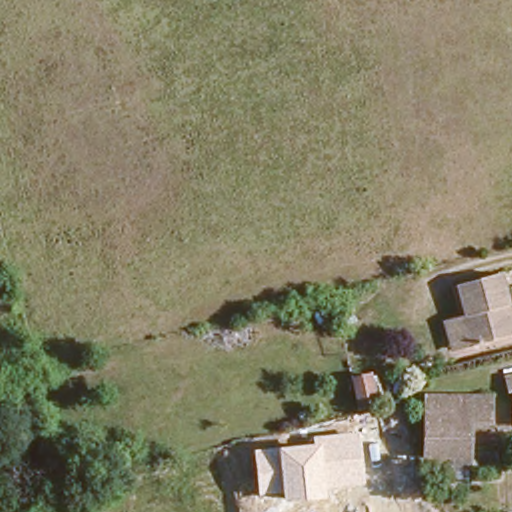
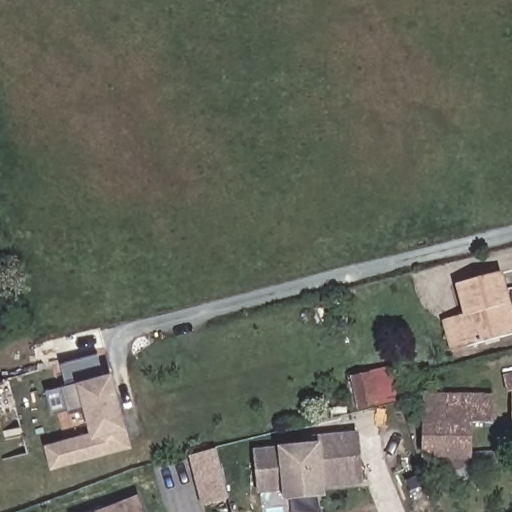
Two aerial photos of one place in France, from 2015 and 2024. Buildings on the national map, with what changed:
unchanged [(505,272),(512,300),(512,337),(469,347),(460,318),(469,314),(462,281),(505,272)]
new [(52,465),(46,444),(92,432),(86,407),(69,411),(69,409),(52,413),(47,389),(65,384),(59,362),(97,352),(103,372),(111,370),(125,425),(129,444),(52,465)]
unchanged [(371,371),(381,402),(356,410),(350,378),(371,371)]
unchanged [(510,393),(511,379),(512,379),(512,394),(510,393)]
unchanged [(435,462),(435,453),(427,453),(425,453),(426,394),(491,394),(491,421),(472,421),(470,453),(457,453),(457,462),(435,462)]
unchanged [(364,486),(328,489),(328,495),(280,500),(280,492),(258,495),(252,450),(313,444),(313,436),(357,431),(364,486)]
new [(216,450),(229,501),(201,506),(187,456),(216,450)]
new [(145,512),(86,512),(138,492),(145,512)]

